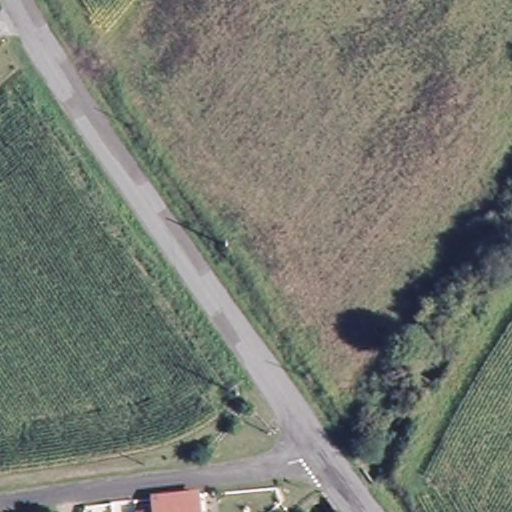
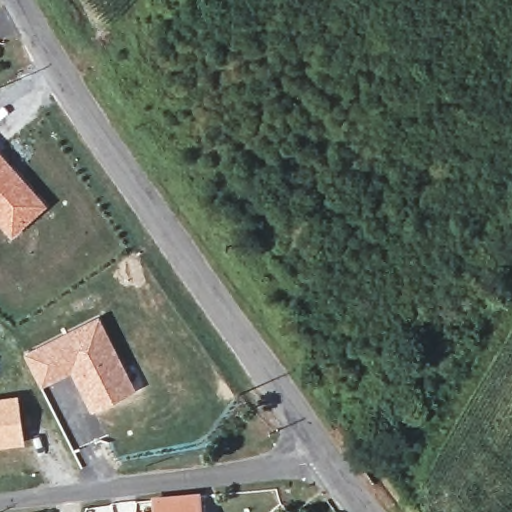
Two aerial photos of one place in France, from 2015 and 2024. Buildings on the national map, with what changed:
new [(12,238),(0,224),(0,151),(49,205),(12,238)]
new [(136,388),(92,412),(72,371),(42,387),(24,354),(99,316),(136,388)]
new [(0,446),(0,398),(17,396),(22,444),(0,446)]
unchanged [(147,507),(146,491),(195,483),(200,512),(132,512),(132,509),(147,507)]

